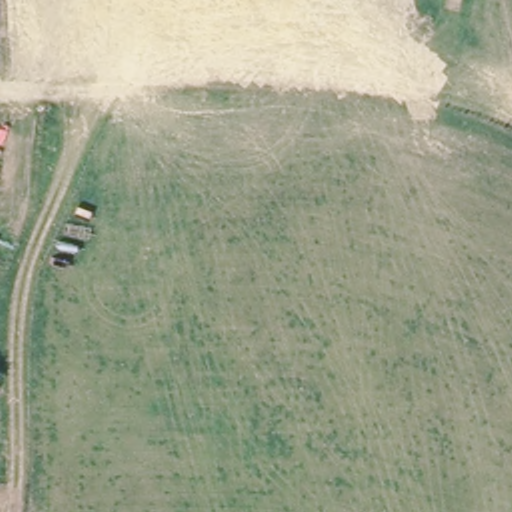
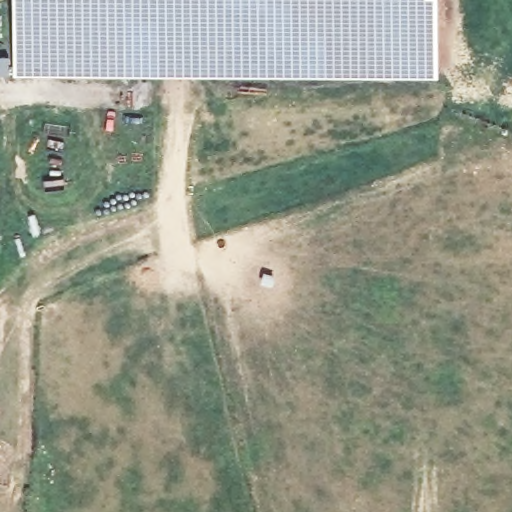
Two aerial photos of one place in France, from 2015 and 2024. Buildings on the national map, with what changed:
new [(439,78),(15,74),(15,0),(439,0),(439,78)]

